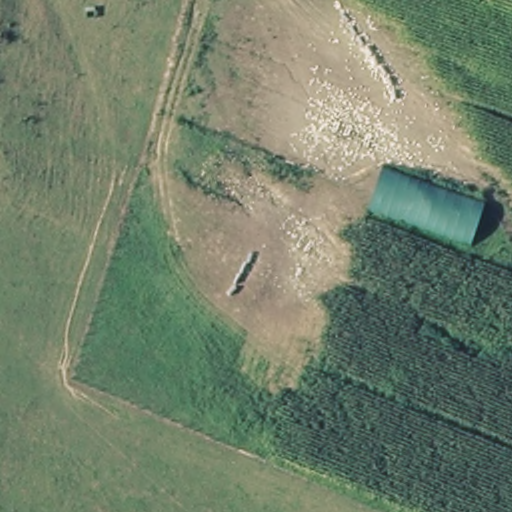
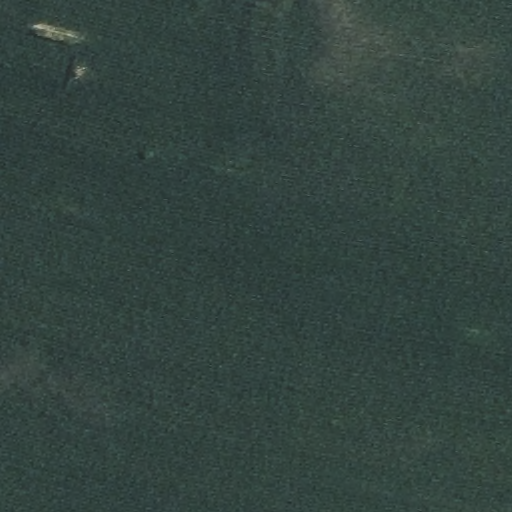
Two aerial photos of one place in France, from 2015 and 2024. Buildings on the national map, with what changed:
demolished [(486,196),(473,237),(369,199),(383,159),(486,196)]

